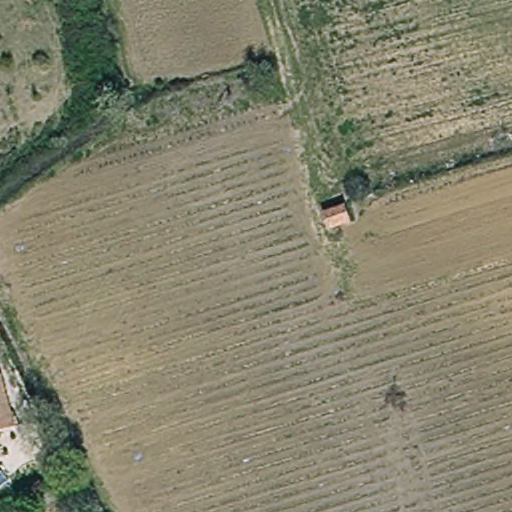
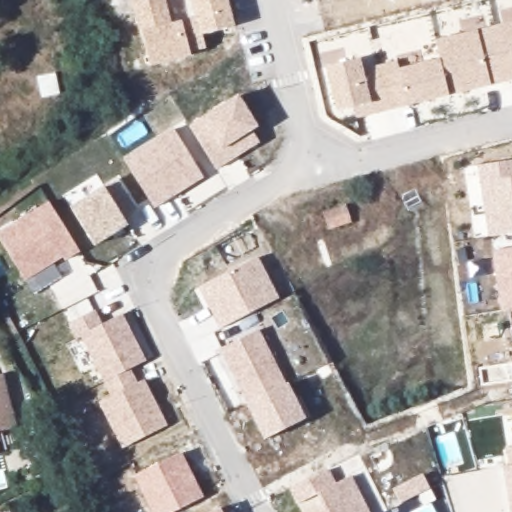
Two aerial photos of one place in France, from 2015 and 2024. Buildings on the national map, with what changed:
new [(147,0),(166,0),(172,24),(183,20),(183,22),(195,18),(191,0),(228,0),(235,26),(203,35),(207,49),(192,52),(192,55),(151,66),(140,31),(132,5),(147,0)]
new [(490,85),(450,95),(407,106),(357,119),(355,107),(337,111),(327,66),(361,59),(364,70),(397,61),(400,69),(440,60),(435,40),(478,30),(512,22),(512,79),(490,85)]
new [(203,117),(238,95),(259,127),(253,131),(261,143),(217,170),(188,126),(203,117)]
new [(173,128),(205,178),(155,209),(123,159),(173,128)]
new [(512,160),(512,233),(489,236),(477,165),(512,160)]
new [(104,186),(105,188),(117,180),(137,209),(124,219),(129,225),(95,247),(70,207),(104,186)]
new [(65,261),(63,257),(26,281),(0,240),(0,232),(48,202),(81,252),(65,261)]
new [(512,249),(512,310),(501,311),(492,252),(512,249)]
new [(258,257),(280,298),(222,327),(200,287),(258,257)]
new [(103,324),(123,315),(147,360),(130,369),(137,382),(145,380),(168,425),(122,449),(98,403),(112,395),(82,338),(77,340),(69,324),(95,310),(103,324)]
new [(260,331),(287,383),(288,382),(307,418),(265,441),(246,404),(248,402),(221,350),(260,331)]
unchanged [(0,432),(0,375),(2,375),(15,427),(0,432)]
new [(510,512),(503,466),(510,465),(507,450),(512,449),(512,512),(510,512)]
new [(204,496),(172,512),(152,512),(133,476),(181,452),(204,496)]
new [(317,495),(297,505),(289,490),(329,468),(337,483),(352,477),(370,512),(310,512),(322,505),(317,495)]
new [(223,512),(212,512),(221,507),(223,512)]

